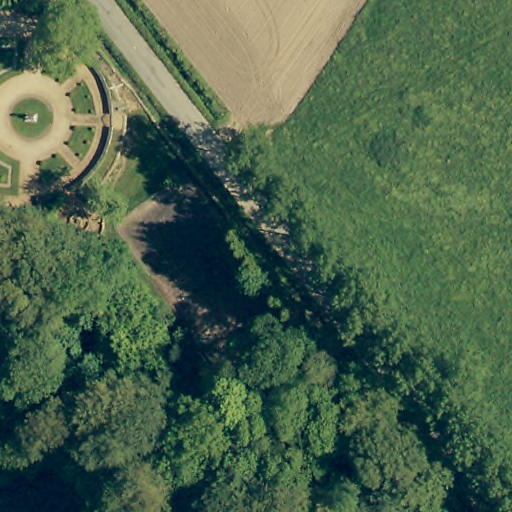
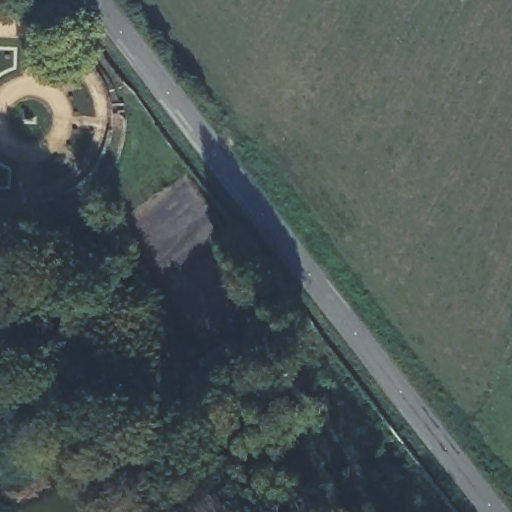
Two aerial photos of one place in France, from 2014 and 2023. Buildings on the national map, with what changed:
[]

